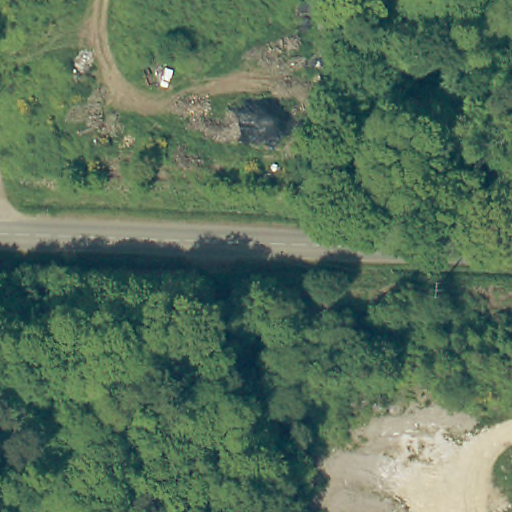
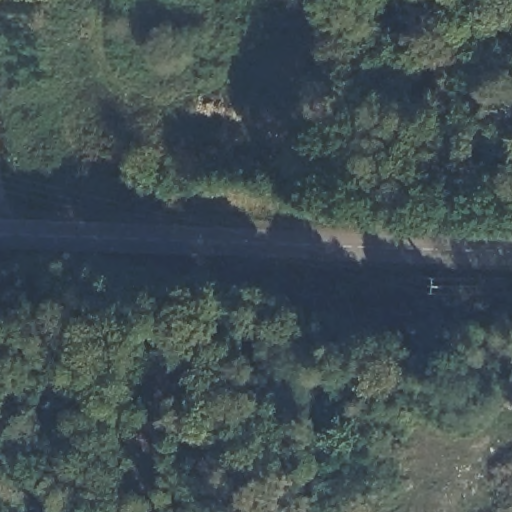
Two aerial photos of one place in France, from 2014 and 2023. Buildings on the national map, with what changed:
unchanged [(512,31),(499,22),(500,19),(509,3),(512,5),(512,31)]

